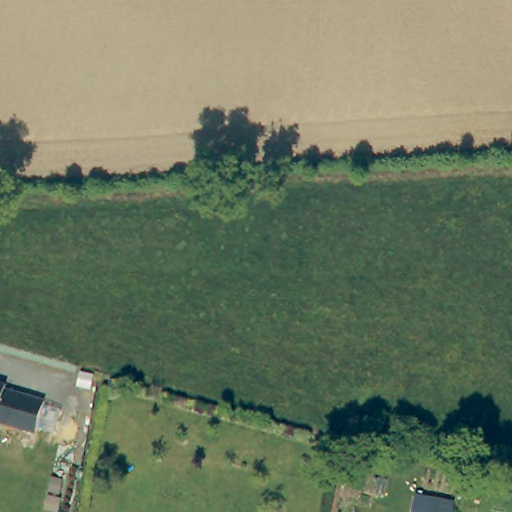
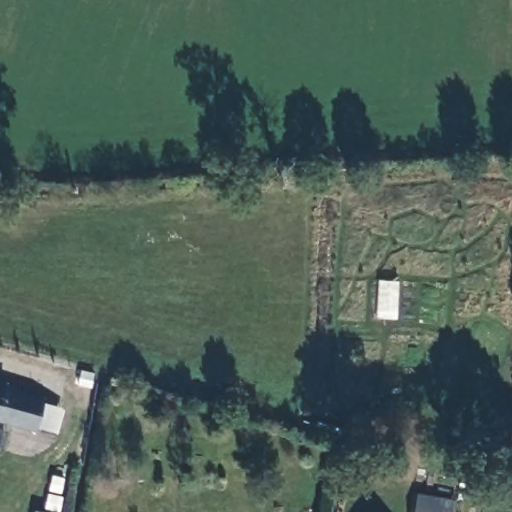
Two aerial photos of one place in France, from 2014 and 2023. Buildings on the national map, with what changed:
unchanged [(32,433),(0,425),(0,387),(2,392),(40,402),(32,433)]
unchanged [(457,512),(416,512),(418,501),(446,506),(457,507),(457,512)]

